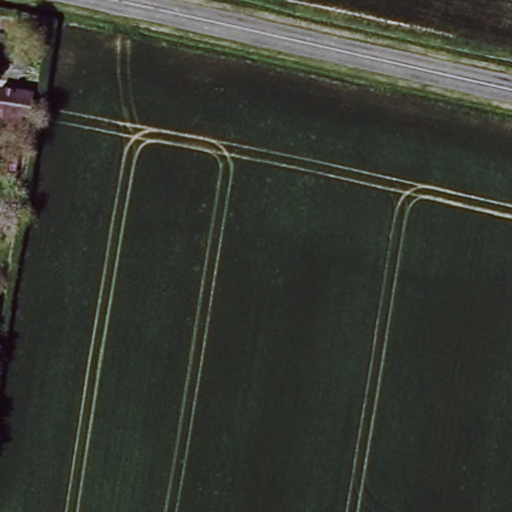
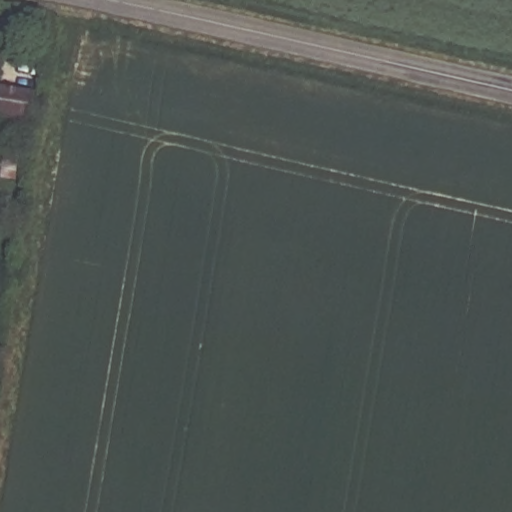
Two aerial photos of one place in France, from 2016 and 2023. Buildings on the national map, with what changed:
unchanged [(30,129),(0,124),(0,94),(32,99),(30,129)]

